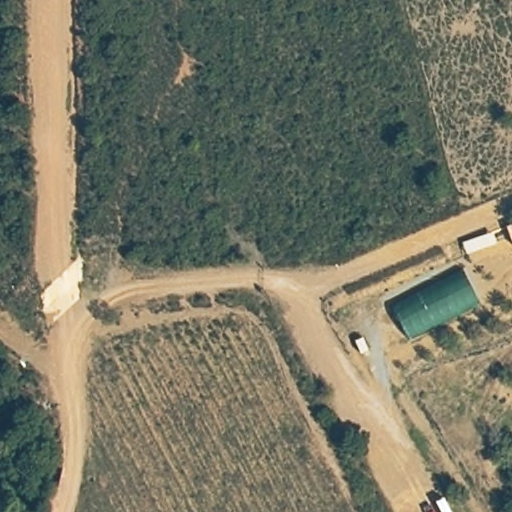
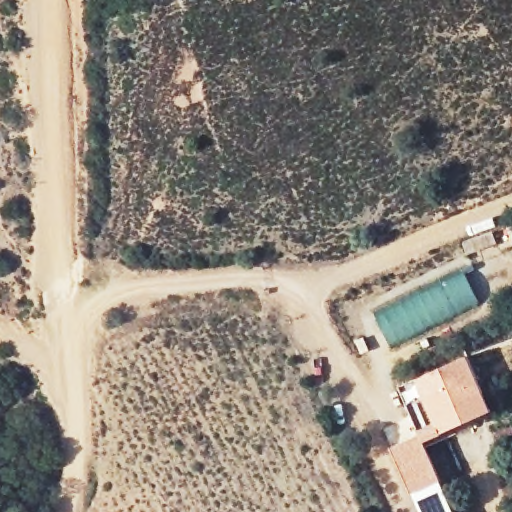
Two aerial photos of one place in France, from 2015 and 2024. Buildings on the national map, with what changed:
unchanged [(512,226),(512,239),(508,227),(512,226)]
unchanged [(372,313),(463,267),(481,304),(393,348),(372,313)]
new [(492,412),(442,434),(424,442),(442,482),(412,493),(390,448),(417,436),(435,427),(414,380),(467,356),(492,412)]

